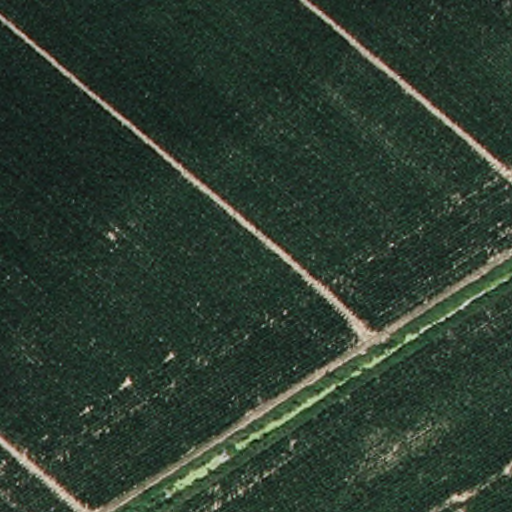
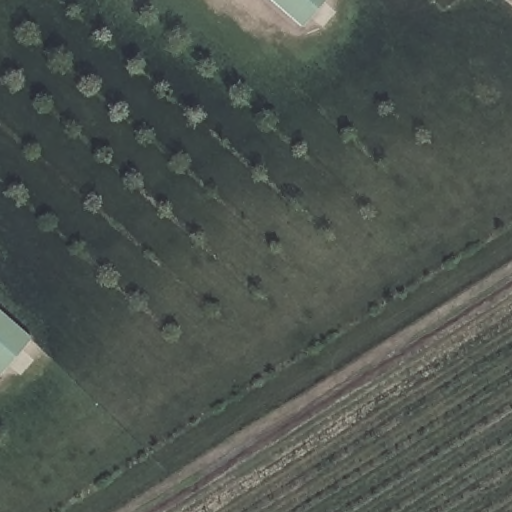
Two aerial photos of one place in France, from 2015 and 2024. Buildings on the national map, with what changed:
new [(267,0),(326,0),(300,30),(267,0)]
new [(0,311),(31,337),(0,374),(0,311)]

